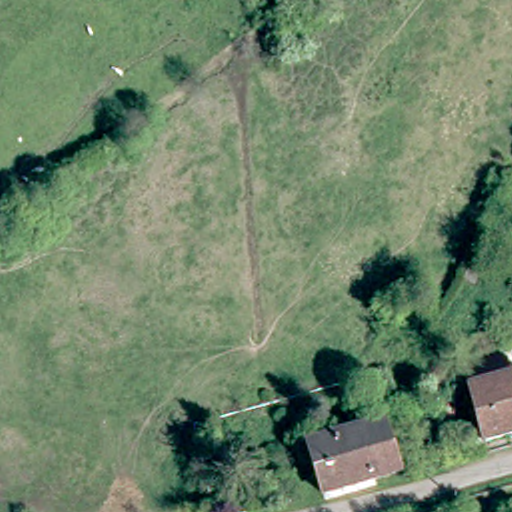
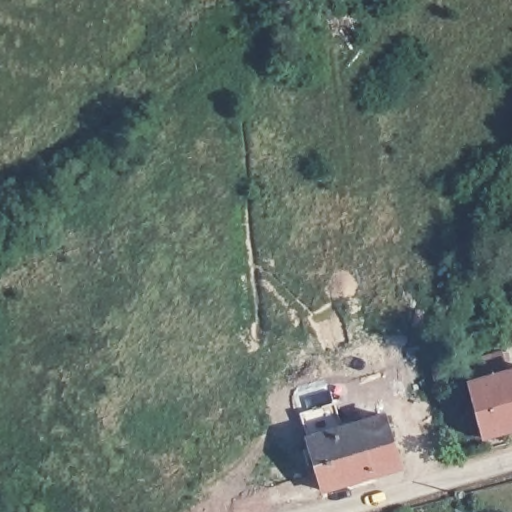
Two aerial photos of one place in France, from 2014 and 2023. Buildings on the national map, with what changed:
unchanged [(495,447),(474,371),(512,360),(512,442),(495,447)]
unchanged [(386,423),(400,475),(323,500),(312,463),(308,447),(386,423)]

